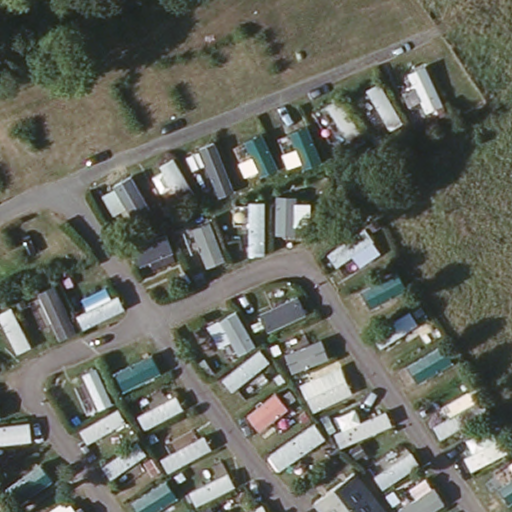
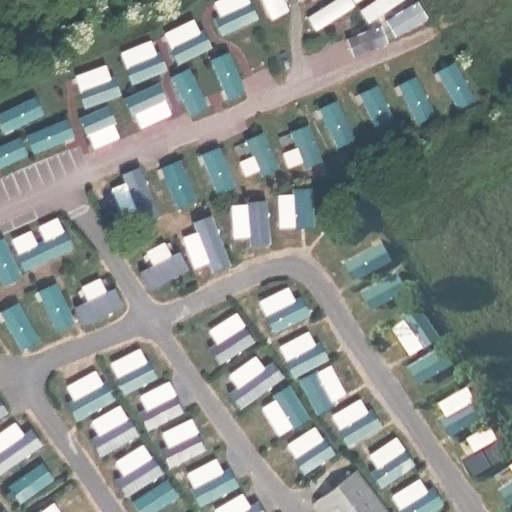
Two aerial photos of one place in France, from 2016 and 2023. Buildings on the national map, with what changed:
unchanged [(352,468),(384,512),(316,512),(308,500),(352,468)]

